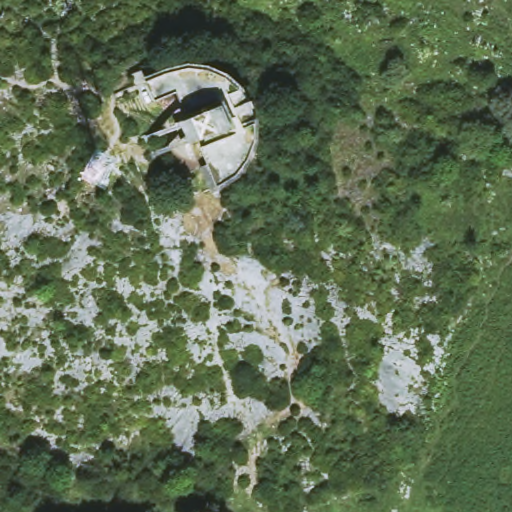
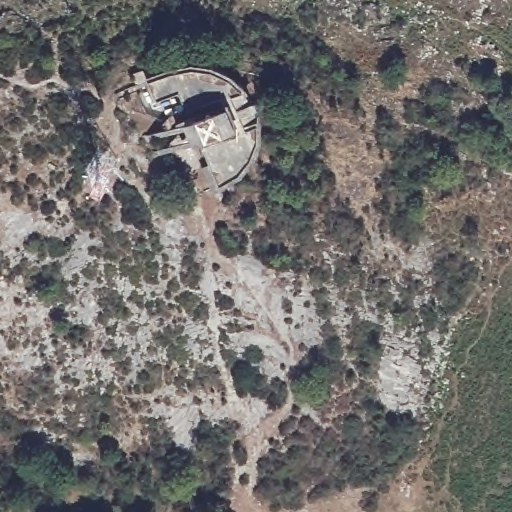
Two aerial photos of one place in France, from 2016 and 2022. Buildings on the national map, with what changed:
unchanged [(258,121),(255,137),(248,156),(217,187),(175,85),(154,96),(142,73),(186,59),(198,59),(215,64),(227,71),(240,79),(250,90),(256,105),(258,121)]

